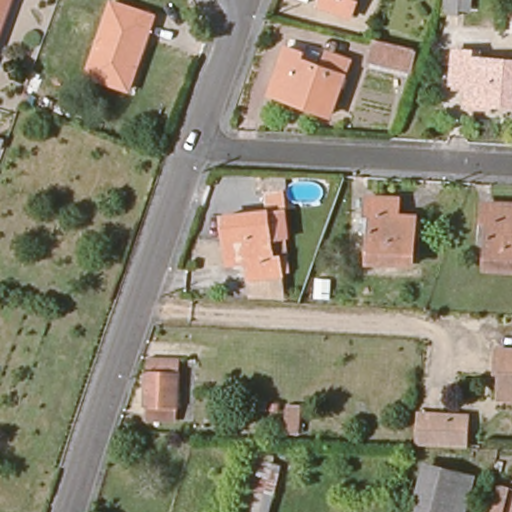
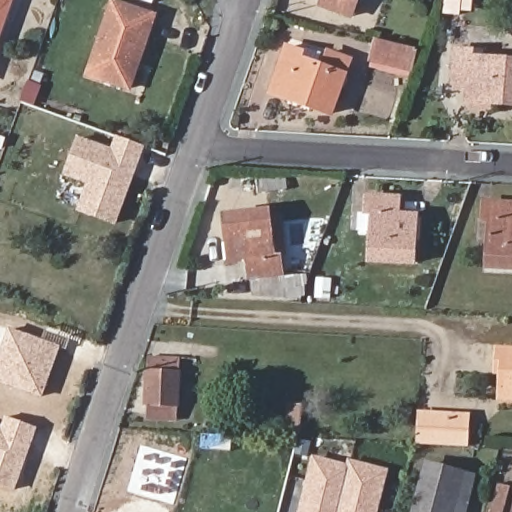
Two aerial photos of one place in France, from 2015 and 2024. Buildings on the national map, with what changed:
unchanged [(0,0),(8,0),(0,23),(0,0)]
unchanged [(359,10),(332,0),(363,0),(359,10)]
unchanged [(471,18),(445,16),(446,0),(472,0),(471,18)]
unchanged [(154,18),(136,65),(134,64),(125,87),(87,74),(113,4),(154,18)]
unchanged [(411,72),(372,63),(376,41),(417,50),(411,72)]
unchanged [(348,67),(329,116),(268,93),(285,49),(302,56),(299,62),(322,71),(327,59),(348,67)]
unchanged [(476,54),(475,61),(512,65),(512,108),(470,103),(473,88),(460,86),(463,54),(476,54)]
new [(76,211),(85,183),(62,175),(77,135),(111,147),(115,135),(145,146),(116,226),(76,211)]
unchanged [(287,183),(288,194),(246,198),(245,186),(287,183)]
unchanged [(401,193),(400,213),(420,214),(417,263),(375,261),(378,213),(371,212),(373,192),(401,193)]
unchanged [(492,272),(495,223),(487,223),(489,204),(512,206),(512,273),(492,272)]
unchanged [(266,211),(271,257),(278,256),(280,275),(247,278),(246,261),(230,262),(225,215),(266,211)]
new [(0,350),(9,327),(42,339),(47,326),(70,336),(65,349),(60,348),(42,397),(0,383),(0,350)]
unchanged [(506,391),(506,365),(501,365),(502,347),(512,347),(512,398),(506,398),(506,391)]
unchanged [(182,367),(180,414),(150,413),(150,367),(182,367)]
unchanged [(471,416),(470,445),(419,442),(420,413),(471,416)]
new [(37,427),(14,491),(0,486),(0,429),(5,415),(37,427)]
new [(127,491),(141,445),(187,458),(174,504),(127,491)]
new [(389,469),(378,512),(297,512),(311,455),(347,464),(348,459),(389,469)]
unchanged [(276,489),(287,491),(284,507),(271,505),(270,512),(246,512),(261,457),(281,464),(276,489)]
unchanged [(410,464),(419,466),(413,488),(405,485),(410,464)]
unchanged [(450,512),(418,512),(431,467),(460,474),(450,512)]
unchanged [(509,512),(495,512),(501,485),(512,488),(512,501),(509,512)]

